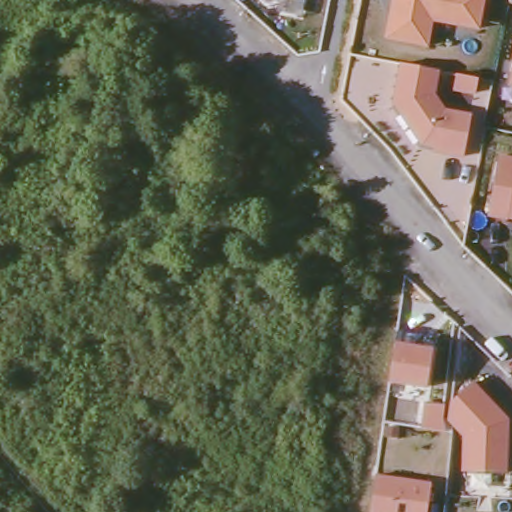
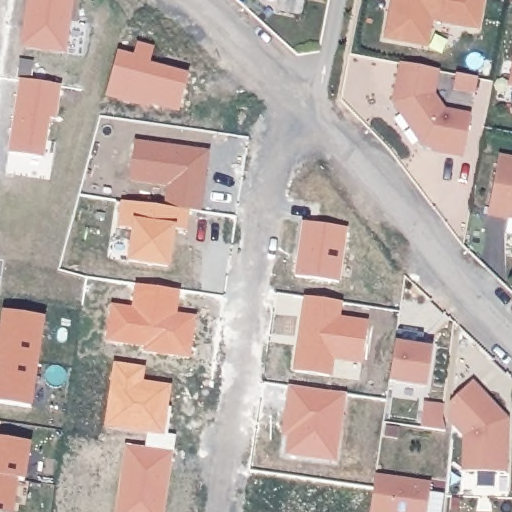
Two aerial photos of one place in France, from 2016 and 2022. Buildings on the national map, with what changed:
new [(25,22),(28,0),(73,0),(65,53),(25,47),(28,22),(25,22)]
unchanged [(393,0),(486,0),(481,31),(433,22),(430,48),(385,40),(393,0)]
new [(116,54),(132,58),(136,45),(152,50),(148,66),(187,77),(178,112),(150,105),(148,108),(105,96),(116,54)]
new [(20,60),(33,62),(30,78),(17,77),(20,60)]
unchanged [(434,155),(435,148),(422,146),(393,105),(401,64),(441,72),(437,94),(446,110),(473,115),(465,159),(434,155)]
new [(20,80),(60,86),(55,119),(49,118),(43,157),(10,152),(20,80)]
new [(134,142),(160,146),(160,149),(167,150),(167,147),(208,153),(200,212),(187,211),(165,207),(167,186),(129,180),(134,142)]
unchanged [(492,221),(503,162),(512,164),(512,224),(511,224),(511,225),(492,221)]
new [(122,201),(165,207),(187,211),(184,231),(173,229),(167,266),(129,261),(133,230),(119,227),(122,201)]
new [(301,260),(303,260),(305,255),(302,254),(306,222),(346,228),(338,282),(298,276),(301,260)]
new [(175,353),(145,349),(145,344),(107,338),(112,305),(133,308),(136,284),(177,290),(176,306),(170,305),(168,313),(189,316),(193,321),(190,340),(188,355),(175,353)]
new [(305,297),(340,302),(338,318),(368,323),(362,362),(332,357),(330,377),(295,372),(298,347),(300,336),(305,297)]
new [(1,318),(45,325),(40,362),(0,357),(0,327),(1,318)]
unchanged [(396,343),(435,350),(428,389),(390,383),(396,343)]
new [(40,362),(35,401),(0,395),(0,357),(40,362)]
new [(145,447),(147,432),(106,426),(115,362),(143,366),(141,382),(170,386),(162,434),(175,436),(173,451),(167,450),(165,465),(170,466),(165,491),(160,491),(159,498),(165,499),(162,512),(117,512),(126,444),(145,447)]
unchanged [(465,435),(448,420),(450,404),(475,382),(511,420),(508,472),(465,471),(465,435)]
new [(286,453),(289,435),(283,434),(287,403),(290,386),(345,393),(335,461),(286,453)]
new [(29,442),(23,481),(16,480),(0,477),(0,438),(29,442)]
unchanged [(377,475),(432,482),(429,512),(372,512),(377,475)]
new [(16,480),(11,512),(0,512),(0,477),(16,480)]

